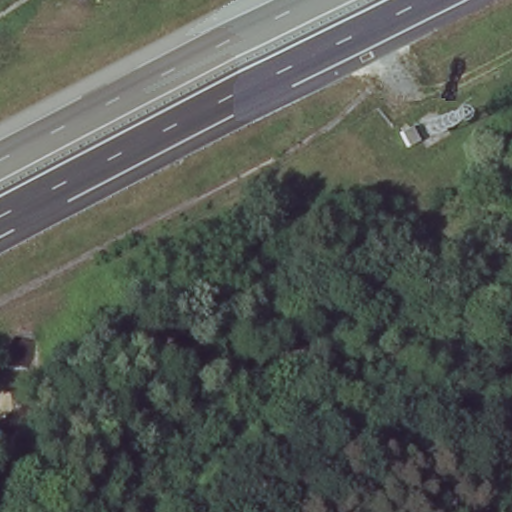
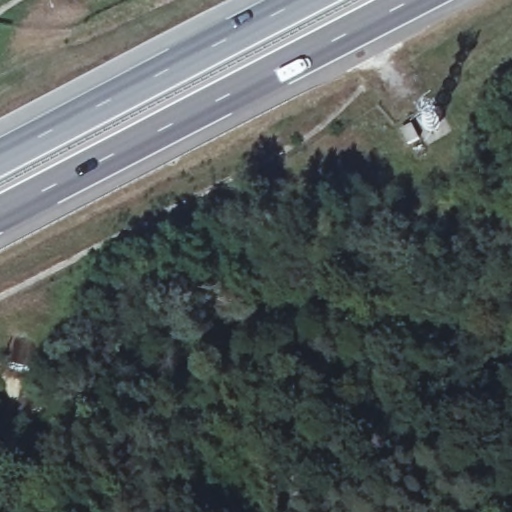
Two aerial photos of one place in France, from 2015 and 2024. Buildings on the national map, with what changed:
unchanged [(414,125),(421,141),(410,146),(403,131),(414,125)]

